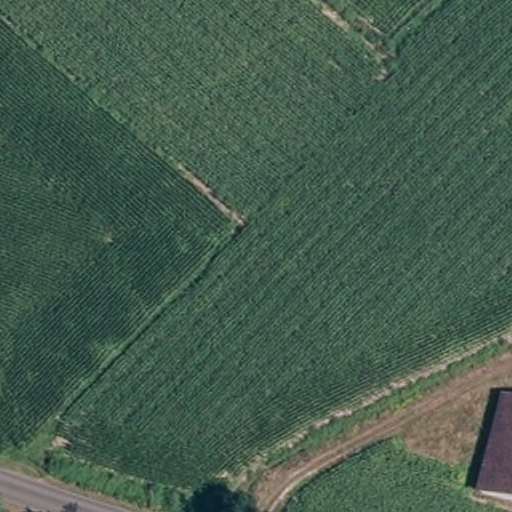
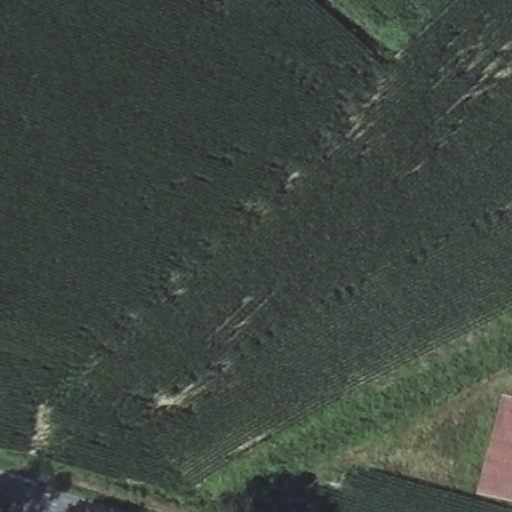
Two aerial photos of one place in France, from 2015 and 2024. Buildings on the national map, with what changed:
unchanged [(480,490),(502,398),(512,400),(512,498),(480,490)]

